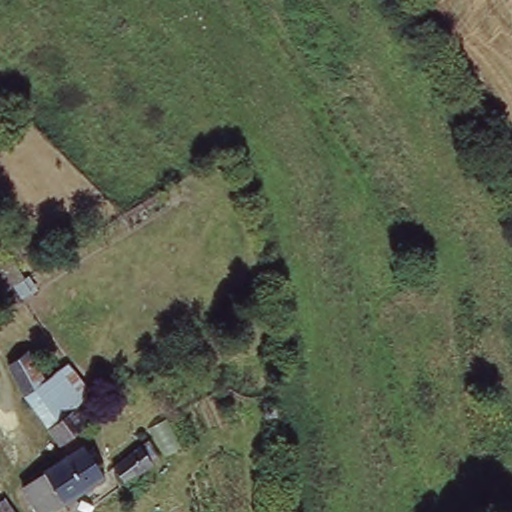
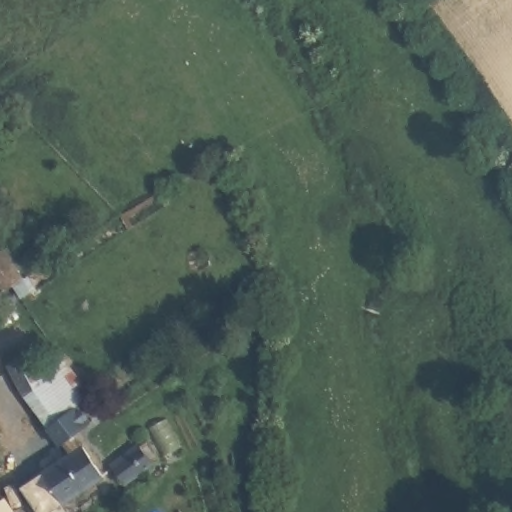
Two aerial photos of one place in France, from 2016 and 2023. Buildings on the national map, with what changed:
unchanged [(0,296),(0,252),(4,249),(24,279),(0,296)]
unchanged [(81,425),(55,445),(0,368),(20,356),(41,385),(47,382),(68,410),(70,408),(80,421),(81,425)]
unchanged [(152,461),(121,482),(110,467),(140,445),(152,461)]
unchanged [(79,449),(100,476),(67,502),(66,499),(49,512),(34,512),(21,495),(65,459),(79,449)]
unchanged [(5,499),(14,512),(0,512),(0,502),(5,499)]

